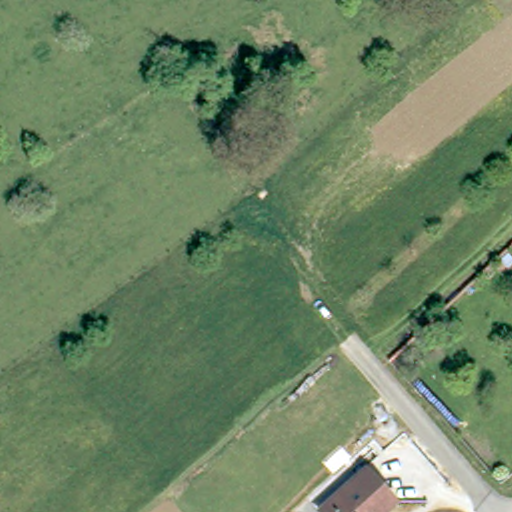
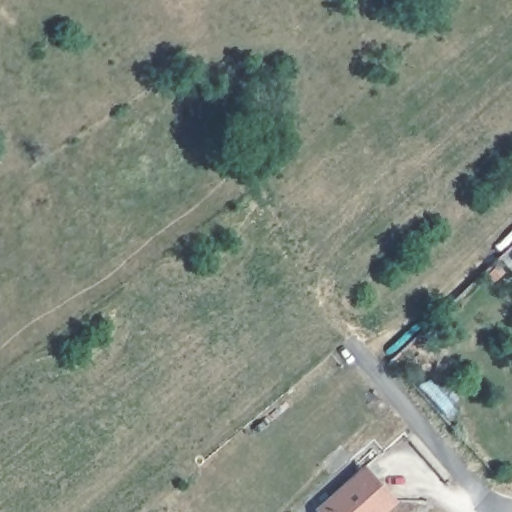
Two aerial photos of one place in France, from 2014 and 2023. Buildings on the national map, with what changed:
unchanged [(370,467),(400,500),(386,512),(328,512),(324,508),(370,467)]

